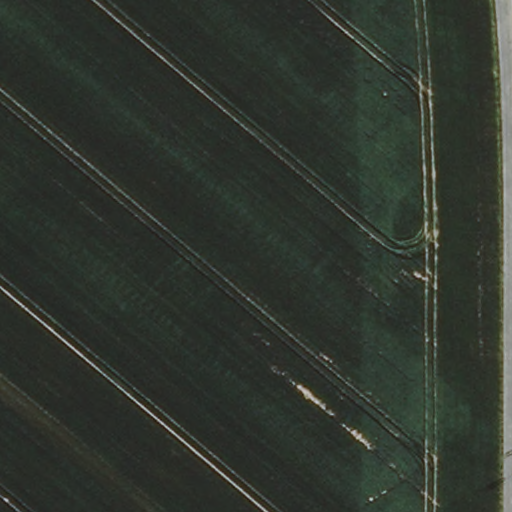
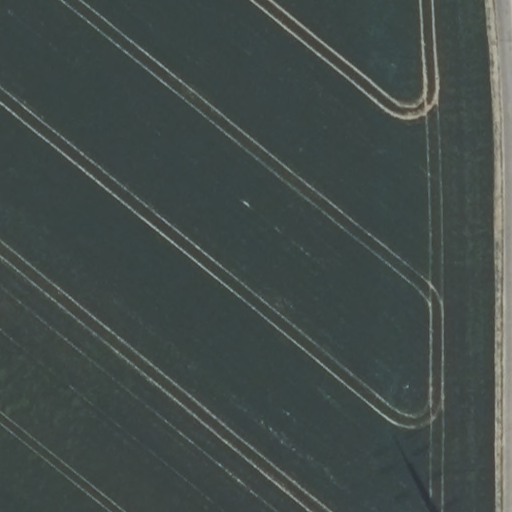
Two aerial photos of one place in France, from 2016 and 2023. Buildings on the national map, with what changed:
[]

